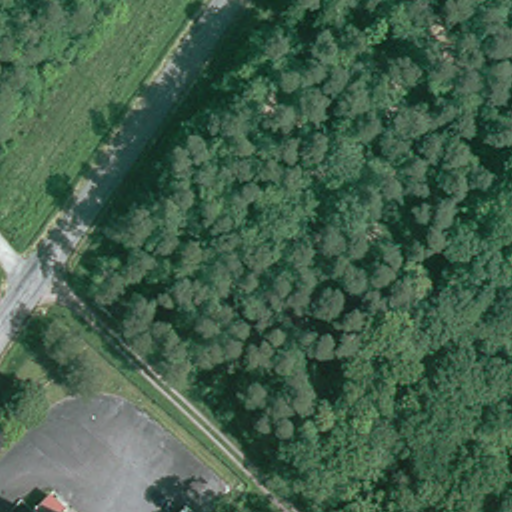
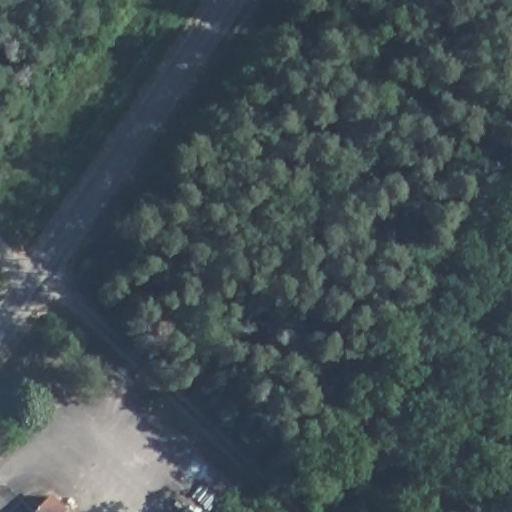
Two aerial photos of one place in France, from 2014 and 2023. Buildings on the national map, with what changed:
unchanged [(198,512),(189,512),(193,508),(198,512)]

